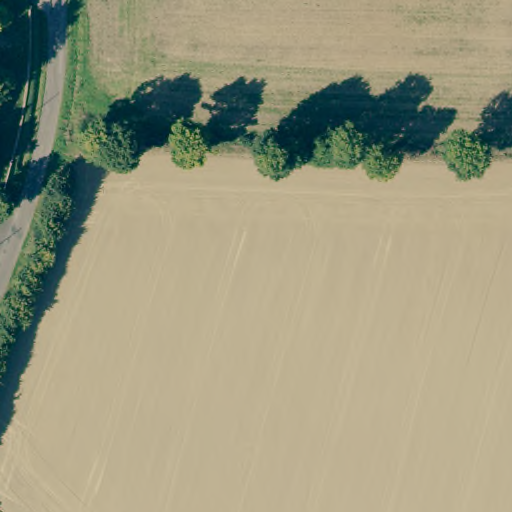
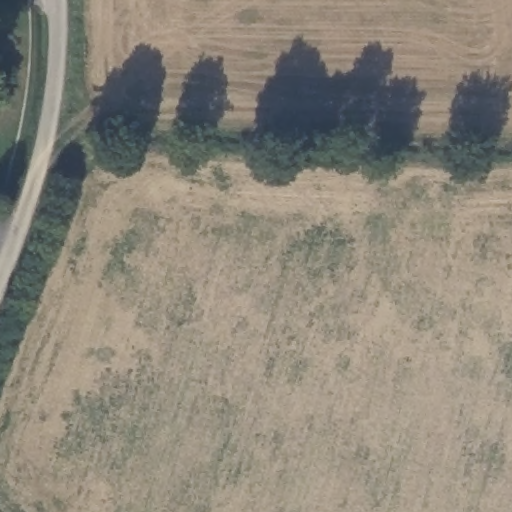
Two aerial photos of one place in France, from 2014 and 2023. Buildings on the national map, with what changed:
[]

